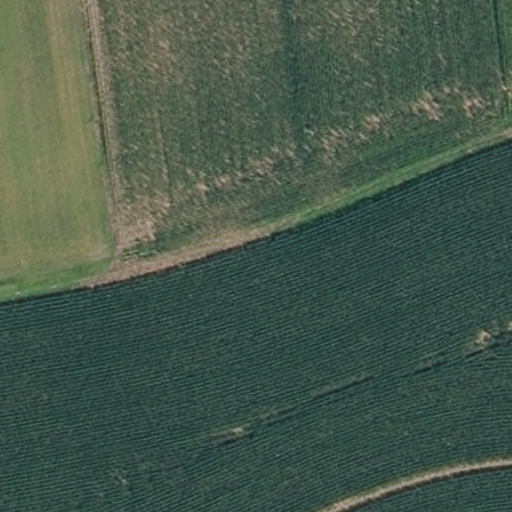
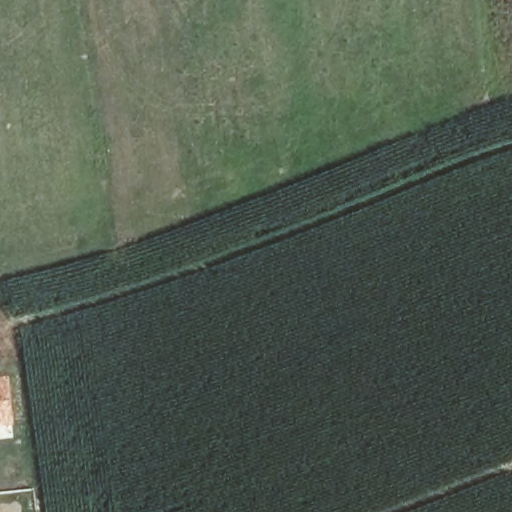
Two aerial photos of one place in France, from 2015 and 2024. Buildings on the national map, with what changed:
new [(14,426),(0,427),(0,376),(9,376),(14,426)]

